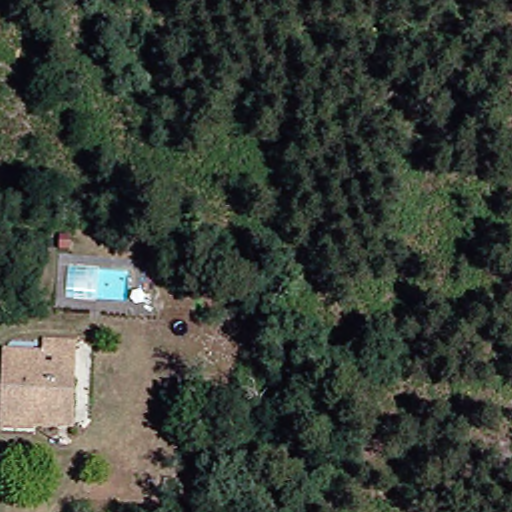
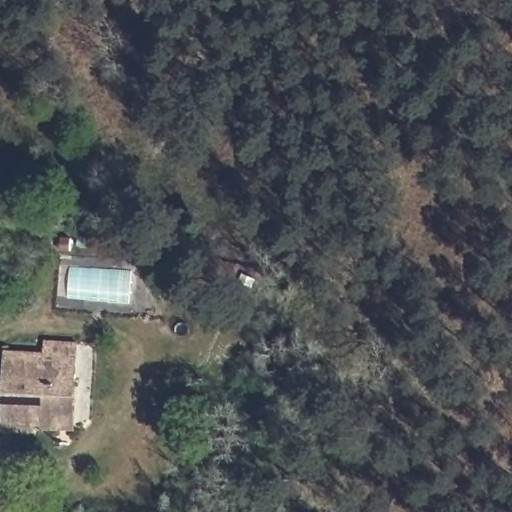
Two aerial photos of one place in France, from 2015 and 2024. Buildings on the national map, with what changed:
unchanged [(0,397),(0,349),(32,348),(31,339),(70,341),(64,398),(0,397)]
unchanged [(62,412),(42,412),(34,425),(0,427),(0,397),(64,398),(62,412)]

